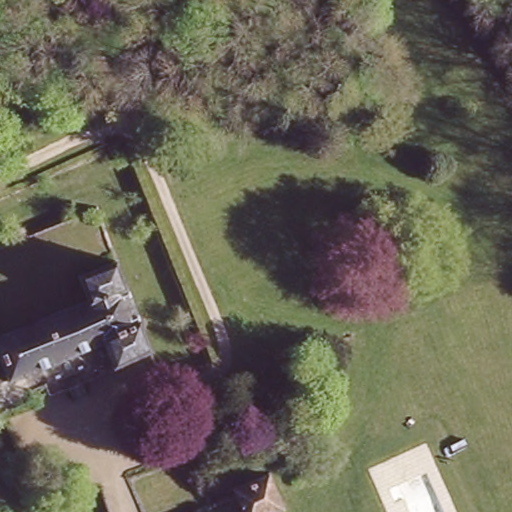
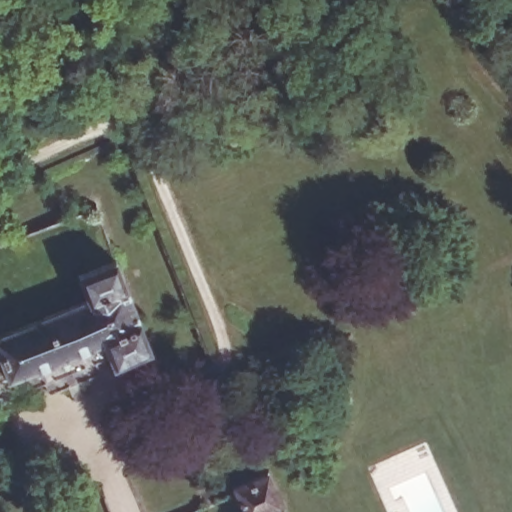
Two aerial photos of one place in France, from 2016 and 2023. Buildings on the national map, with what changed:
unchanged [(0,371),(0,342),(83,305),(73,279),(112,262),(148,353),(112,370),(102,345),(7,389),(0,371)]
unchanged [(235,487),(235,484),(259,472),(268,468),(284,505),(279,508),(269,512),(248,512),(235,487)]

